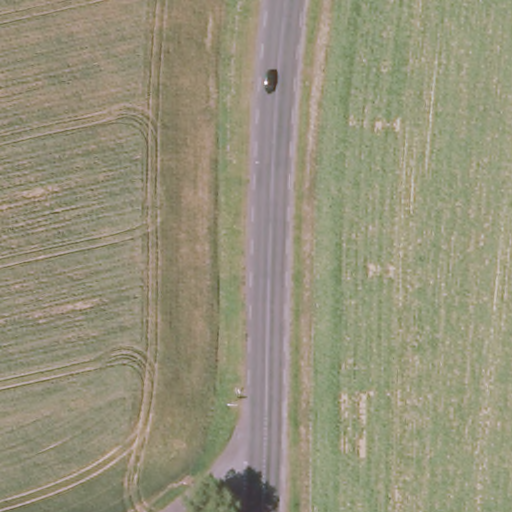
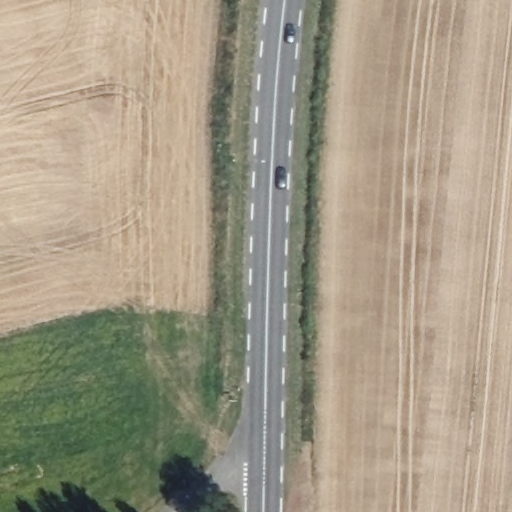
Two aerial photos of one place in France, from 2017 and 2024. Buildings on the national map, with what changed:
unchanged [(223,489),(223,505),(206,505),(206,487),(223,489)]

